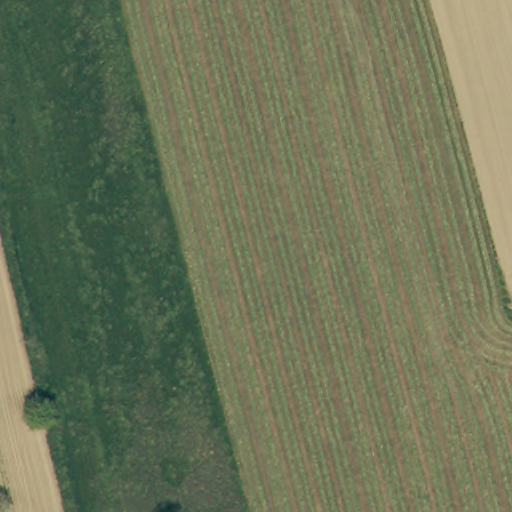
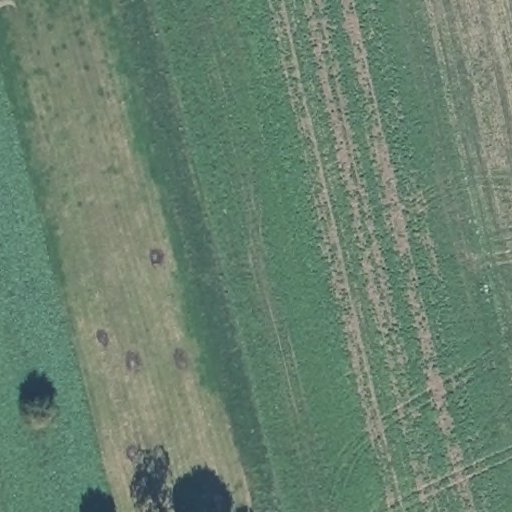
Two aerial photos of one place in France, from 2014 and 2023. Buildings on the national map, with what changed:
[]

